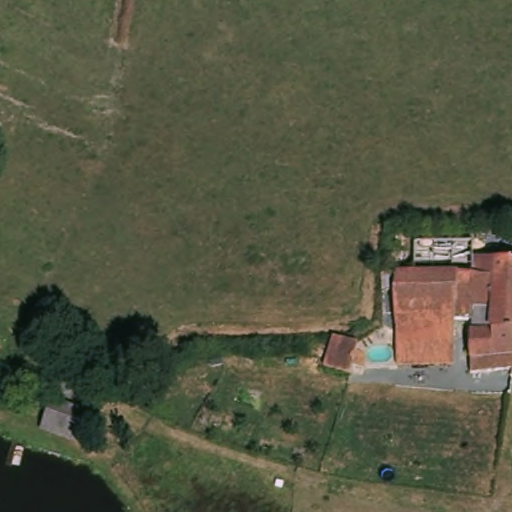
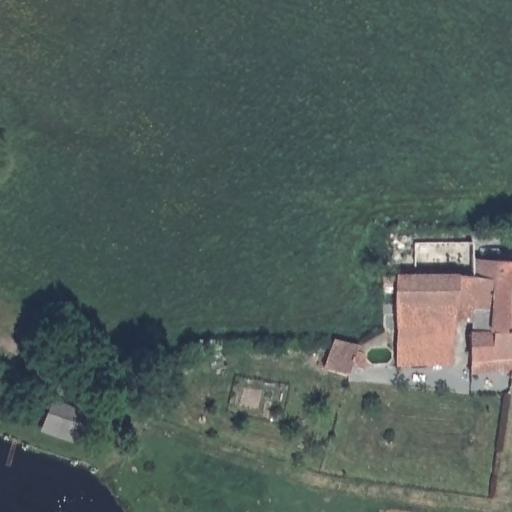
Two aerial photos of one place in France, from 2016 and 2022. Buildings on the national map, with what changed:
unchanged [(405,272),(404,240),(472,237),(473,252),(441,256),(443,271),(405,272)]
unchanged [(465,326),(471,324),(470,302),(454,303),(456,318),(445,320),(449,361),(390,367),(385,341),(390,340),(385,290),(369,291),(367,276),(367,275),(405,272),(443,271),(441,256),(473,252),(512,248),(512,347),(505,359),(471,362),(468,363),(465,326)]
unchanged [(321,363),(330,341),(358,348),(356,353),(365,356),(360,368),(352,366),(350,371),(321,363)]

